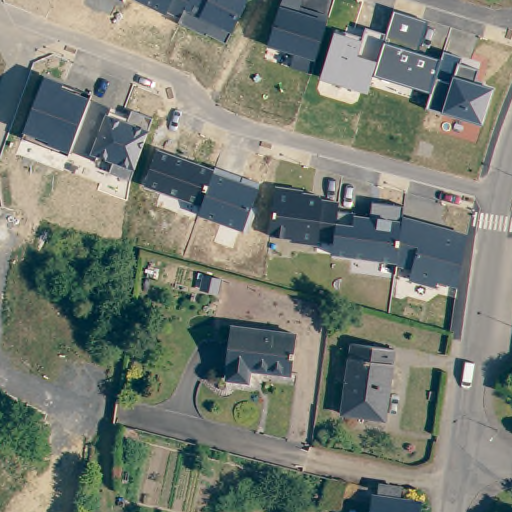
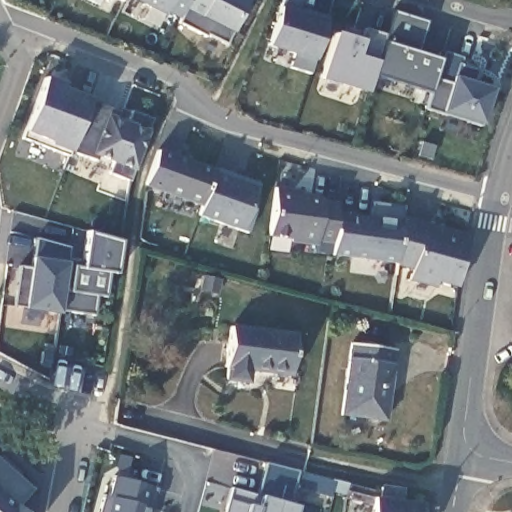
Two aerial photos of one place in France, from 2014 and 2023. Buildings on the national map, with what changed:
unchanged [(120,0),(123,0),(122,1),(120,0)]
unchanged [(226,44),(206,33),(206,36),(179,22),(182,18),(166,12),(165,15),(136,0),(248,0),(232,32),(226,44)]
unchanged [(284,0),(303,0),(299,12),(327,21),(310,74),(290,67),(294,55),(269,47),(280,6),(284,0)]
unchanged [(334,32),(363,40),(364,29),(386,35),(394,12),(427,22),(417,53),(439,60),(440,60),(443,52),(461,57),(458,65),(477,70),(473,84),(493,89),(481,125),(442,112),(425,108),(430,94),(372,76),(367,91),(323,79),(334,32)]
unchanged [(26,133),(44,76),(64,84),(62,87),(90,99),(89,102),(111,110),(109,115),(129,122),(132,110),(152,119),(148,131),(134,170),(131,179),(131,180),(110,171),(115,162),(97,156),(94,160),(70,152),(68,155),(23,138),(26,133)]
unchanged [(159,151),(258,187),(245,230),(198,215),(202,206),(146,186),(159,151)]
unchanged [(276,187),(302,190),(302,194),(320,195),(324,201),(336,201),(336,214),(354,215),(371,216),(371,204),(403,207),(402,217),(467,232),(456,286),(436,282),(434,286),(408,280),(412,270),(397,266),(395,262),(332,255),(335,243),(318,241),(317,245),(290,242),(290,237),(269,236),(276,187)]
new [(20,267),(31,270),(33,257),(35,239),(68,248),(66,258),(83,262),(88,234),(118,242),(114,273),(106,272),(103,296),(95,295),(93,315),(59,312),(59,314),(25,308),(15,305),(20,267)]
unchanged [(249,370),(248,381),(226,379),(227,367),(224,366),(230,327),(294,335),(290,375),(249,370)]
unchanged [(382,420),(341,414),(350,344),(392,350),(382,420)]
new [(14,510),(17,512),(0,512),(0,460),(32,490),(14,510)]
new [(228,488),(254,495),(263,463),(296,472),(287,505),(295,507),(294,512),(222,512),(225,500),(228,488)]
new [(149,512),(96,512),(100,496),(105,497),(111,477),(155,490),(149,512)]
unchanged [(419,505),(419,512),(370,512),(371,504),(342,496),(339,512),(331,512),(322,510),(328,485),(344,486),(344,485),(372,491),(372,497),(377,498),(379,492),(379,487),(401,491),(400,496),(399,502),(419,505)]

